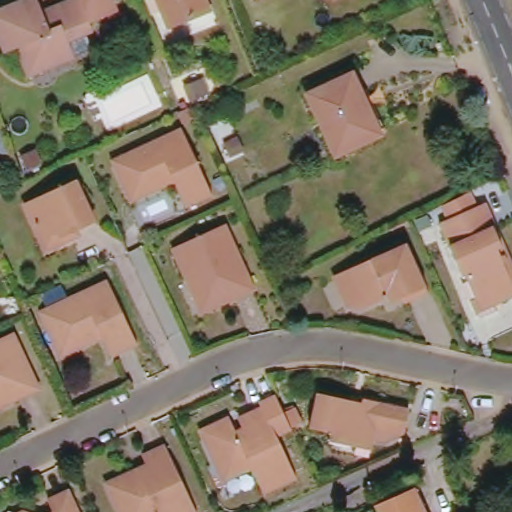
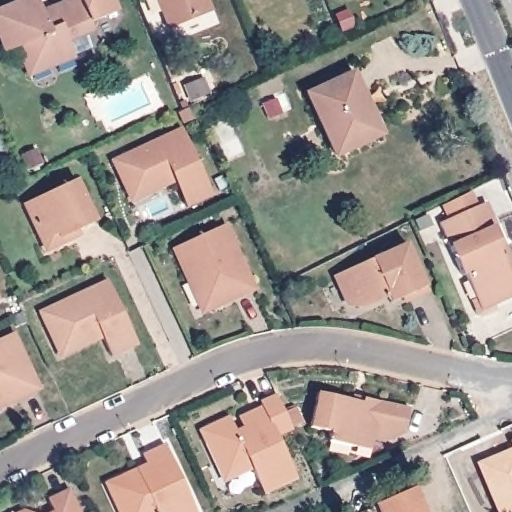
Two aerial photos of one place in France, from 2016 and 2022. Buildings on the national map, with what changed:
unchanged [(74,56),(75,56),(53,65),(45,61),(27,69),(18,47),(6,51),(0,35),(0,11),(26,0),(38,0),(45,19),(53,15),(51,10),(75,0),(111,0),(116,12),(90,23),(93,32),(86,35),(92,49),(74,56)]
unchanged [(205,13),(168,28),(157,0),(200,0),(205,13)]
unchanged [(375,137),(336,155),(307,94),(352,74),(361,92),(356,95),(375,137)]
unchanged [(213,195),(187,207),(175,181),(164,186),(161,180),(140,190),(132,174),(122,179),(113,160),(182,128),(213,195)]
unchanged [(95,227),(72,238),(75,244),(62,250),(57,240),(43,246),(25,208),(75,185),(95,227)]
unchanged [(500,248),(505,261),(510,260),(512,264),(512,275),(511,275),(512,277),(512,294),(495,301),(498,309),(482,316),(477,315),(471,300),(476,298),(465,275),(462,276),(439,224),(450,219),(444,206),(471,194),(477,207),(485,204),(504,246),(500,248)]
unchanged [(254,288),(221,304),(218,298),(205,304),(194,280),(189,281),(173,249),(225,225),(254,288)]
unchanged [(428,296),(403,306),(398,295),(388,299),(390,302),(365,312),(360,302),(348,307),(336,280),(407,249),(428,296)]
unchanged [(57,351),(46,328),(40,313),(108,281),(138,345),(111,357),(100,330),(95,333),(98,339),(84,345),(60,356),(57,351)]
unchanged [(38,392),(16,402),(15,399),(9,401),(12,407),(0,413),(0,344),(13,338),(38,392)]
unchanged [(356,447),(329,441),(331,432),(310,428),(317,393),(362,403),(363,399),(410,409),(409,413),(405,434),(375,428),(373,439),(370,450),(356,447)]
unchanged [(264,492),(252,467),(230,477),(221,459),(216,461),(206,440),(211,426),(221,421),(235,426),(238,435),(245,432),(240,419),(264,407),(262,403),(276,396),(286,416),(297,411),(302,423),(291,428),(276,435),(296,477),(264,492)]
new [(512,449),(512,512),(499,512),(478,461),(512,449)]
unchanged [(126,512),(125,510),(122,512),(118,512),(110,495),(116,491),(126,486),(123,481),(138,475),(140,478),(149,474),(143,461),(166,450),(194,512),(126,512)]
unchanged [(53,512),(48,500),(70,490),(79,512),(53,512)]
unchanged [(371,512),(418,490),(428,512),(371,512)]
unchanged [(29,512),(24,512),(26,511),(29,512)]

